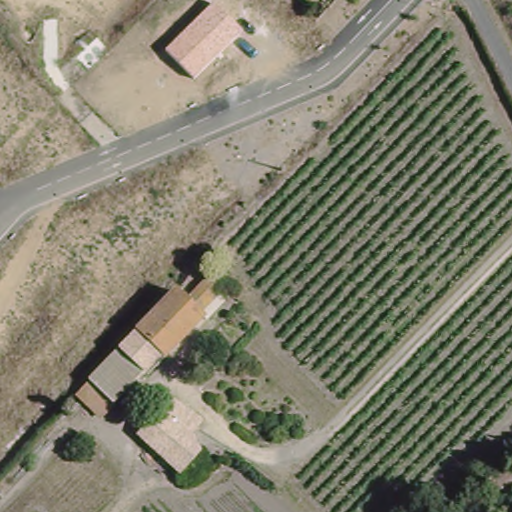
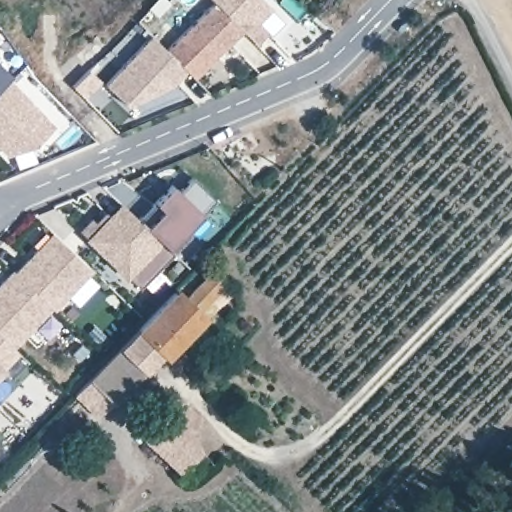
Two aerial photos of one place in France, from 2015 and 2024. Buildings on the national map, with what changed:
new [(259,22),(267,32),(255,43),(244,31),(215,3),(213,0),(262,0),(271,9),(259,22)]
unchanged [(215,3),(244,31),(192,79),(167,50),(215,3)]
new [(187,72),(173,87),(129,105),(106,85),(152,36),(167,50),(187,72)]
new [(88,68),(99,79),(84,95),(73,84),(88,68)]
new [(0,88),(0,71),(9,79),(0,88)]
new [(55,125),(35,147),(7,156),(0,148),(0,88),(9,79),(55,125)]
new [(172,187),(179,194),(192,180),(215,202),(186,233),(190,237),(173,256),(138,223),(172,187)]
new [(90,221),(94,225),(104,215),(110,220),(122,207),(138,223),(173,256),(140,292),(78,233),(90,221)]
new [(52,237),(92,274),(54,315),(51,312),(14,277),(52,237)]
unchanged [(81,385),(90,376),(180,291),(185,296),(216,267),(230,281),(200,311),(204,316),(202,318),(169,348),(137,379),(134,376),(110,398),(102,406),(81,385)]
new [(14,277),(51,312),(13,353),(0,340),(0,286),(11,275),(14,277)]
new [(17,356),(0,374),(0,340),(13,353),(17,356)]
unchanged [(207,445),(185,468),(171,456),(165,451),(142,430),(169,398),(176,389),(194,405),(197,402),(212,417),(202,429),(197,435),(207,445)]

